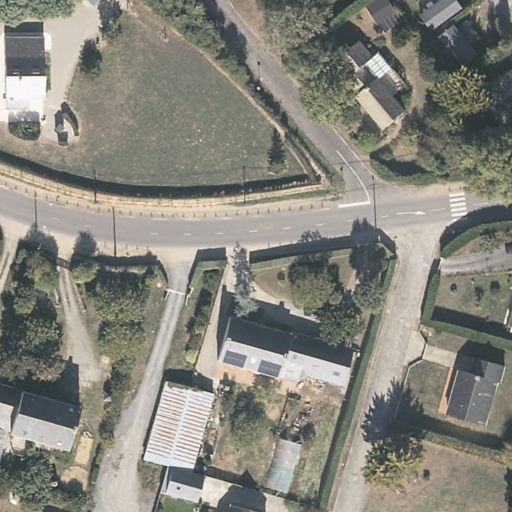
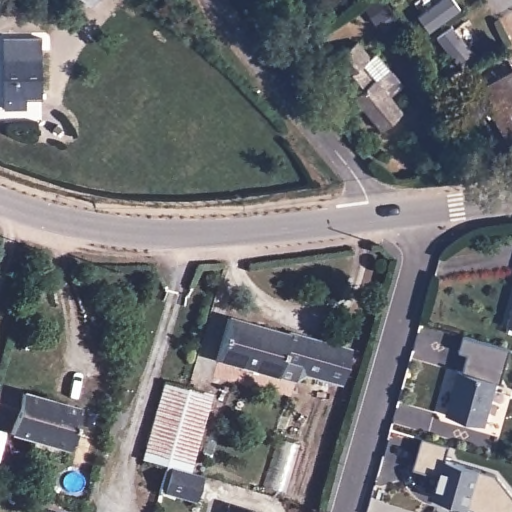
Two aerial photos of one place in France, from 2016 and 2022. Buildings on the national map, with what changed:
unchanged [(89,4),(85,0),(94,0),(89,4)]
unchanged [(374,53),(380,48),(406,80),(392,90),(405,106),(382,123),(356,92),(357,90),(345,74),(348,71),(336,55),(360,35),(374,53)]
unchanged [(45,97),(21,98),(21,108),(5,108),(5,37),(45,37),(45,97)]
unchanged [(511,138),(478,85),(512,65),(512,137),(511,138)]
unchanged [(510,320),(512,312),(512,321),(510,320)]
unchanged [(282,368),(280,378),(217,360),(230,317),(291,334),(292,330),(309,336),(299,373),(282,368)]
unchanged [(353,349),(343,385),(299,373),(309,336),(353,349)]
unchanged [(504,365),(498,383),(497,382),(484,424),(447,413),(459,370),(471,373),(476,357),(504,365)]
unchanged [(67,445),(9,427),(12,417),(0,414),(0,380),(21,386),(80,403),(67,445)]
unchanged [(168,466),(143,459),(166,381),(190,387),(168,466)]
unchanged [(190,387),(213,394),(191,472),(168,466),(190,387)]
unchanged [(0,447),(0,426),(6,427),(0,447)]
new [(450,444),(446,459),(497,474),(512,492),(512,512),(476,512),(474,509),(433,497),(440,476),(413,468),(422,436),(450,444)]
unchanged [(227,512),(230,504),(257,512),(227,512)]

